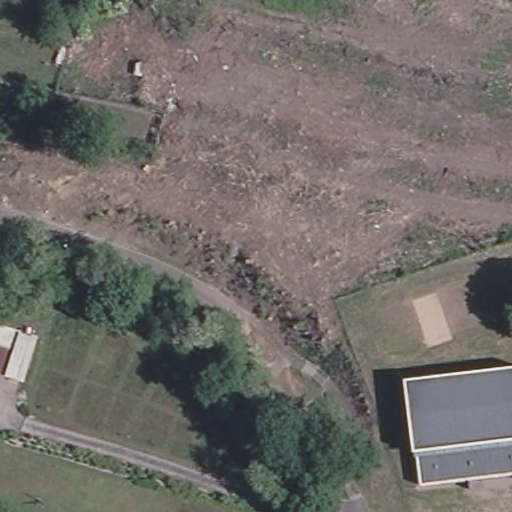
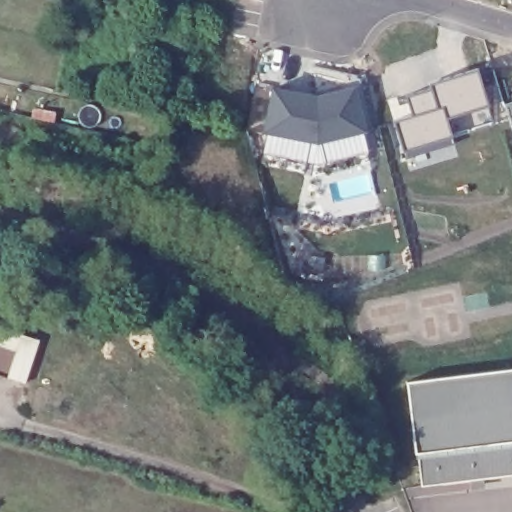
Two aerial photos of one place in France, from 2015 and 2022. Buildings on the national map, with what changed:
new [(414,116),(409,98),(435,90),(432,86),(478,72),(489,108),(448,120),(453,138),(404,154),(397,124),(414,116)]
new [(317,95),(358,85),(368,132),(319,145),(264,134),(272,86),(317,95)]
new [(506,106),(512,104),(512,124),(506,106)]
unchanged [(36,339),(21,380),(0,372),(0,326),(36,339)]
unchanged [(419,485),(415,451),(412,452),(404,378),(512,367),(512,475),(419,485)]

